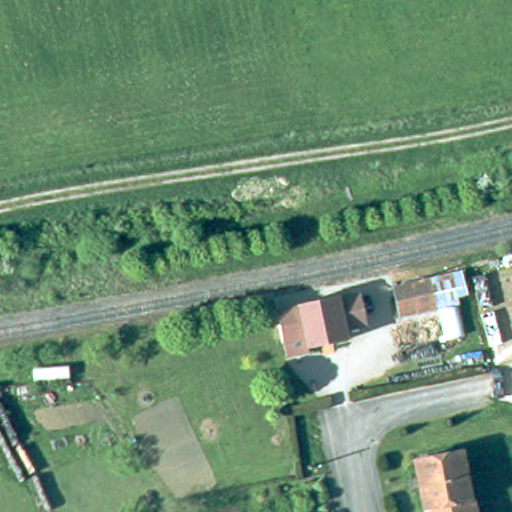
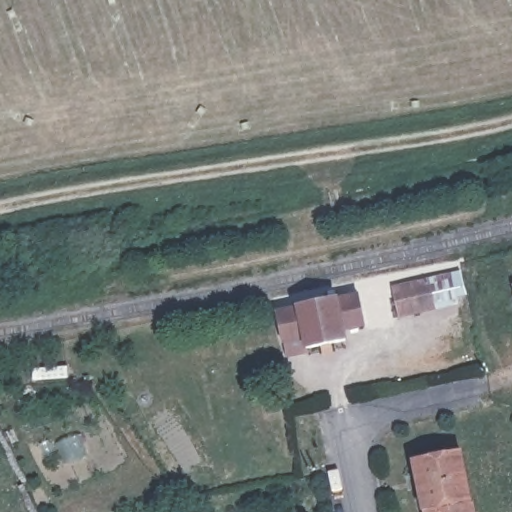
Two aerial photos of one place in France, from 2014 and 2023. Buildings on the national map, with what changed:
unchanged [(396,278),(435,271),(450,268),(457,299),(441,302),(402,312),(396,278)]
unchanged [(338,289),(340,295),(362,290),(370,321),(346,327),(348,338),(310,347),(306,333),(282,339),(275,309),(301,302),(300,298),(338,289)]
unchanged [(425,506),(420,505),(410,455),(460,447),(474,512),(426,512),(425,506)]

